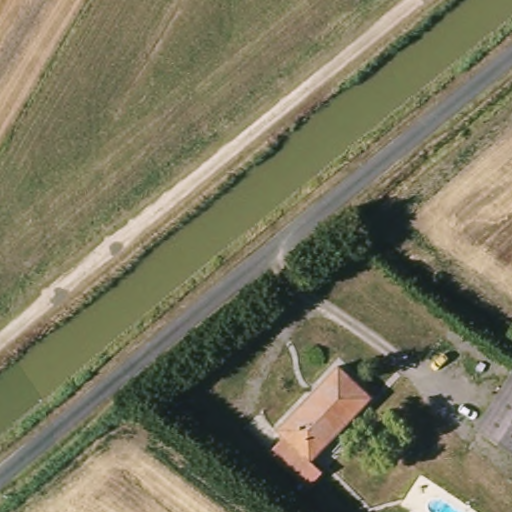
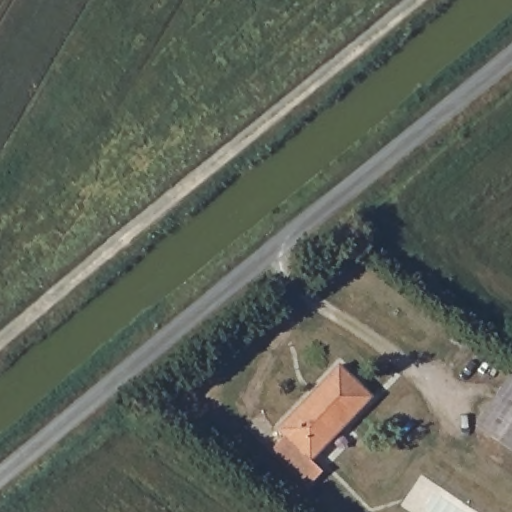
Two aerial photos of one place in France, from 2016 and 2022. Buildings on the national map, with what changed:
unchanged [(376,390),(326,465),(342,476),(328,497),(277,462),(291,441),(284,436),(338,364),(376,390)]
unchanged [(512,451),(482,432),(512,387),(512,451)]

